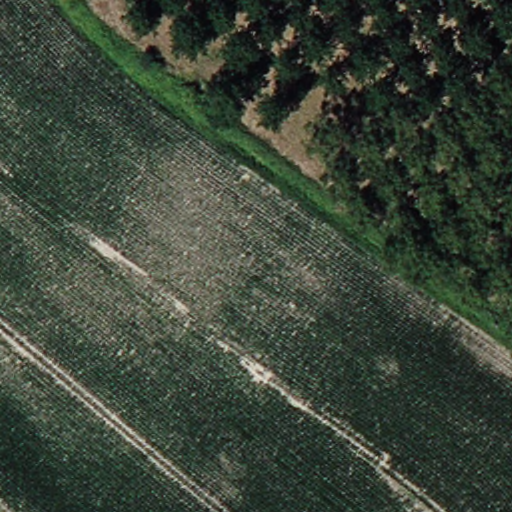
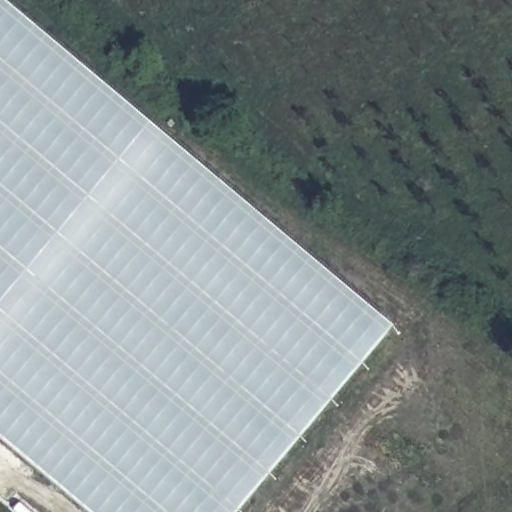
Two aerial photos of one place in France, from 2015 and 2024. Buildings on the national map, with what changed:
new [(395,330),(235,512),(84,512),(0,442),(0,0),(2,0),(395,330)]

